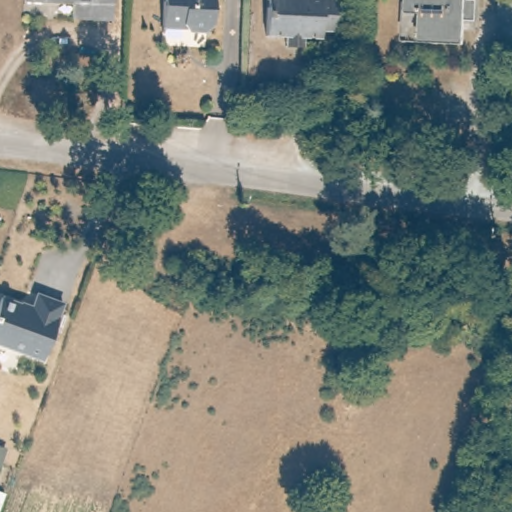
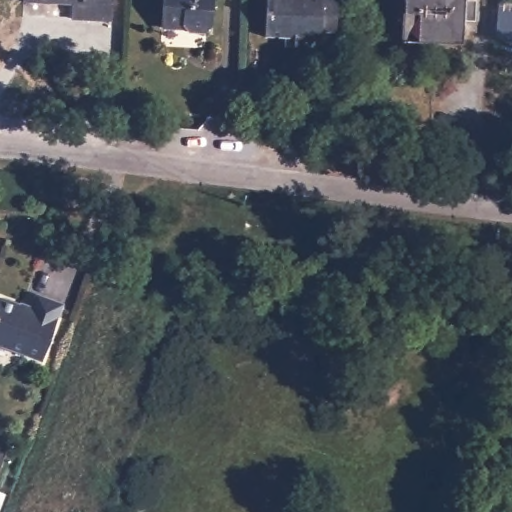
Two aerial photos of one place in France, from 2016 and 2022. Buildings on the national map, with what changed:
unchanged [(71,11),(72,0),(113,0),(112,15),(71,11)]
unchanged [(200,38),(183,38),(179,33),(159,33),(161,0),(208,0),(206,31),(200,38)]
unchanged [(289,38),(289,34),(267,32),(270,0),(340,0),(338,28),(323,27),(322,35),(306,34),(305,39),(305,46),(288,44),(289,38)]
unchanged [(406,0),(475,0),(475,14),(462,14),(461,39),(418,35),(403,34),(405,8),(406,0)]
unchanged [(499,0),(512,0),(512,40),(495,39),(499,0)]
unchanged [(0,346),(0,304),(1,299),(32,310),(37,296),(63,305),(42,362),(0,346)]

